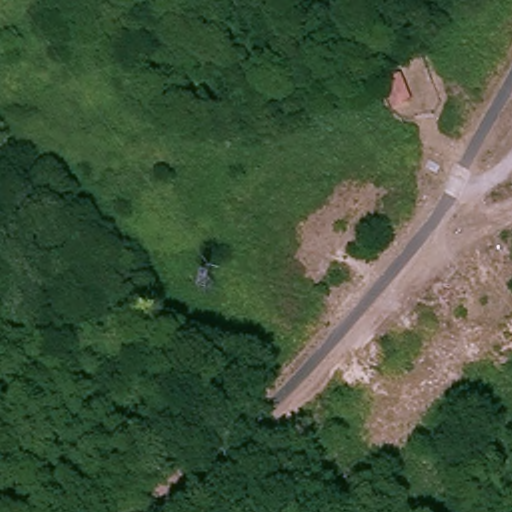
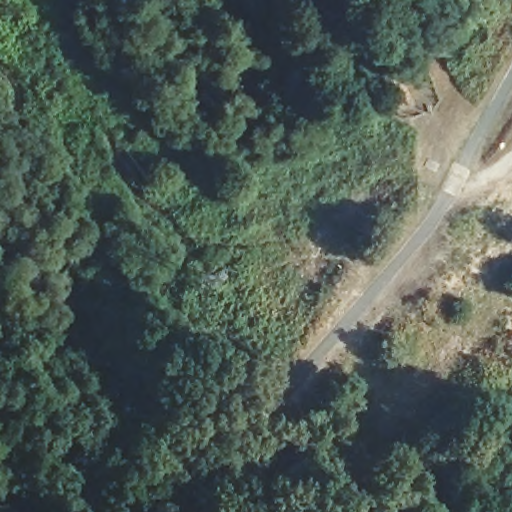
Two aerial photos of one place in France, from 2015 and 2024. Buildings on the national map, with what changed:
unchanged [(401,79),(411,104),(397,110),(387,85),(401,79)]

